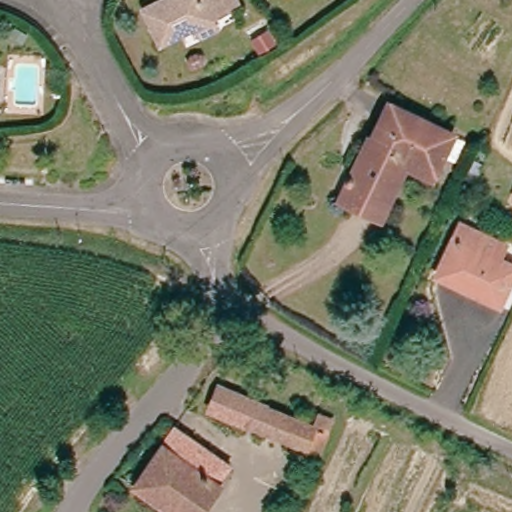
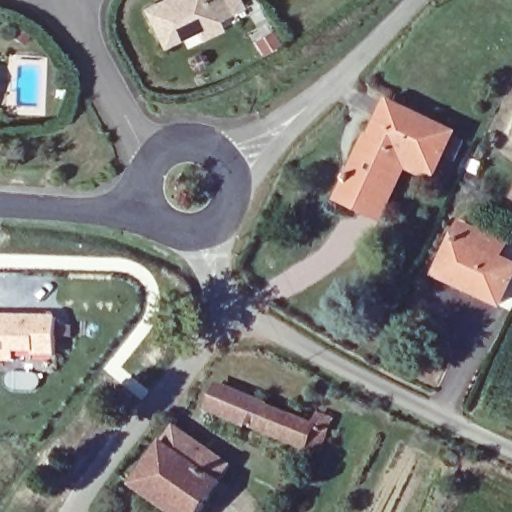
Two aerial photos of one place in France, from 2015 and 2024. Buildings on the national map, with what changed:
unchanged [(165,0),(227,0),(233,12),(218,19),(151,51),(134,15),(165,0)]
unchanged [(371,140),(380,144),(396,109),(455,136),(436,176),(396,157),(372,209),(344,196),(371,140)]
unchanged [(372,209),(396,157),(436,176),(434,181),(407,168),(383,220),(342,201),(344,196),(372,209)]
unchanged [(512,197),(512,200),(511,200),(512,197)]
unchanged [(458,220),(502,242),(496,255),(512,262),(512,270),(496,302),(458,282),(433,271),(437,262),(458,220)]
new [(56,316),(56,357),(35,357),(35,352),(15,352),(15,362),(0,362),(0,315),(56,316)]
unchanged [(216,381),(311,420),(315,408),(330,414),(317,451),(206,405),(216,381)]
unchanged [(130,487),(173,427),(226,465),(214,482),(219,485),(200,512),(166,512),(130,487)]

